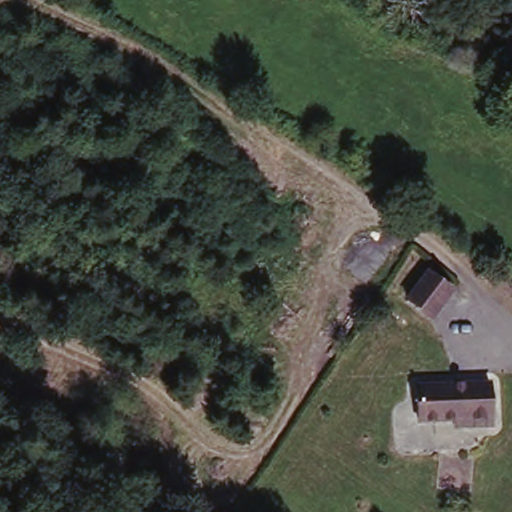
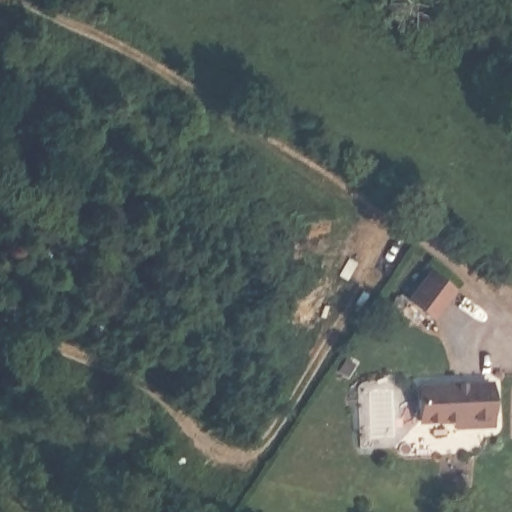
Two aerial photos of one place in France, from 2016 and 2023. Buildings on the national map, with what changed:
unchanged [(454,287),(435,316),(410,299),(430,271),(454,287)]
unchanged [(455,414),(419,416),(417,382),(489,378),(491,419),(467,420),(455,421),(455,414)]

